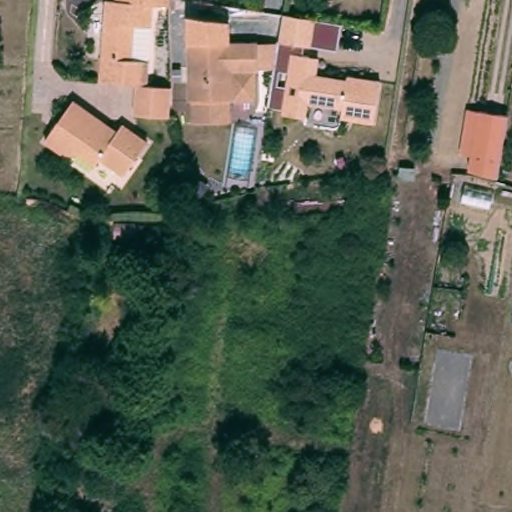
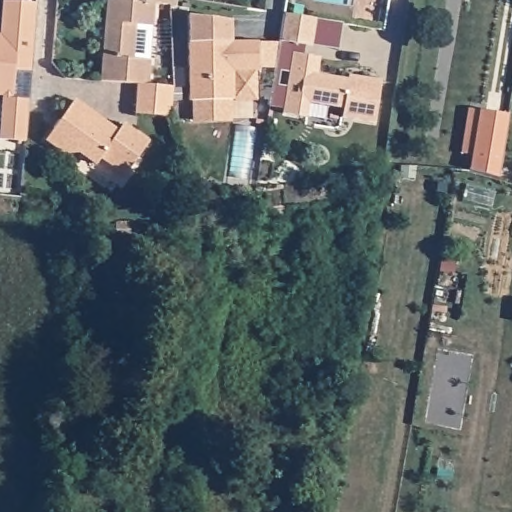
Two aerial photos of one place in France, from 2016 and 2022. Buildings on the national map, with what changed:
unchanged [(105,0),(115,1),(115,0),(171,0),(171,7),(152,6),(151,28),(134,27),(131,61),(149,62),(147,86),(136,86),(99,82),(105,0)]
new [(36,4),(30,72),(13,71),(11,100),(28,101),(25,142),(0,140),(0,109),(1,96),(0,96),(0,15),(1,2),(36,4)]
unchanged [(315,19),(310,47),(278,42),(283,15),(315,19)]
unchanged [(256,71),(257,98),(233,99),(233,100),(228,100),(229,120),(194,121),(193,101),(189,101),(187,44),(257,42),(257,45),(278,45),(274,67),(258,67),(258,71),(256,71)]
unchanged [(347,81),(348,77),(380,82),(374,124),(341,119),(342,109),(308,104),(305,118),(282,114),(292,54),(303,56),(319,58),(318,65),(316,76),(347,81)]
unchanged [(168,118),(133,115),(136,86),(147,86),(171,88),(168,118)]
unchanged [(73,101),(116,132),(121,126),(146,143),(123,176),(94,166),(77,154),(63,155),(45,141),(73,101)]
unchanged [(502,177),(474,170),(476,156),(465,153),(472,108),(483,110),(512,115),(507,150),(502,177)]
new [(235,127),(258,130),(250,182),(227,179),(235,127)]
unchanged [(136,217),(138,233),(116,233),(114,217),(136,217)]

